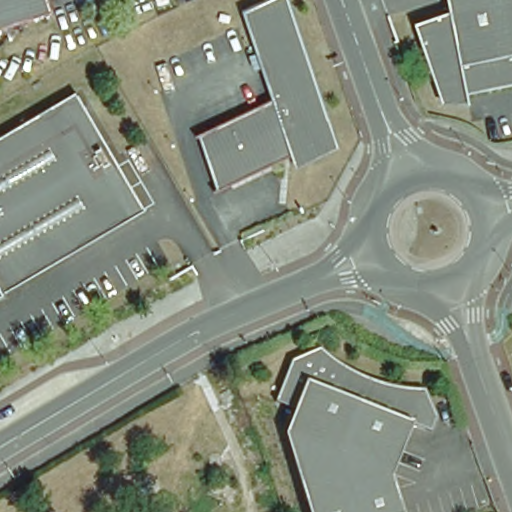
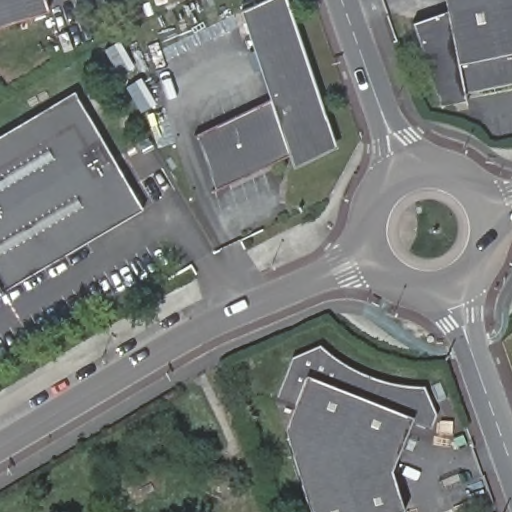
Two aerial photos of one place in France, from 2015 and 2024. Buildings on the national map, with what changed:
unchanged [(0,27),(0,0),(46,0),(50,11),(0,27)]
unchanged [(293,157),(220,192),(201,137),(274,101),(245,15),(275,0),(288,0),(335,136),(340,150),(297,170),(293,157)]
unchanged [(440,98),(413,25),(448,12),(446,0),(512,0),(512,84),(463,94),(465,101),(442,105),(440,98)]
unchanged [(0,286),(0,129),(73,86),(143,204),(0,286)]
unchanged [(320,354),(321,356),(322,356),(323,357),(325,358),(325,359),(326,359),(327,360),(328,361),(330,362),(331,362),(332,363),(333,364),(334,364),(335,365),(336,366),(337,367),(338,367),(340,368),(340,369),(341,369),(342,369),(343,370),(345,371),(346,372),(347,372),(348,373),(350,373),(350,374),(351,374),(352,374),(354,376),(355,376),(356,377),(357,377),(358,378),(360,378),(361,379),(362,379),(363,379),(365,379),(365,380),(367,381),(368,381),(369,382),(370,382),(371,383),(372,383),(374,383),(375,384),(376,384),(377,384),(379,384),(380,385),(381,385),(382,386),(383,386),(385,386),(386,387),(387,387),(388,387),(390,387),(391,388),(392,388),(393,388),(395,388),(396,389),(397,389),(398,389),(400,389),(401,389),(402,389),(403,389),(405,389),(406,389),(407,390),(408,390),(410,390),(411,390),(412,390),(413,390),(415,391),(416,391),(417,391),(419,391),(420,391),(421,391),(422,391),(436,420),(432,431),(412,424),(393,476),(404,512),(310,512),(287,436),(296,411),(277,403),(293,361),(318,353),(320,354)]

